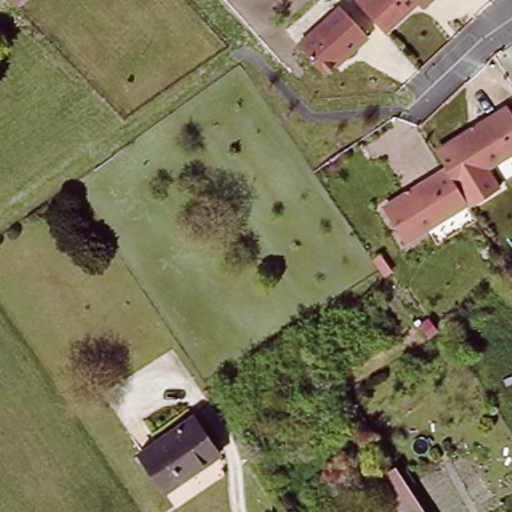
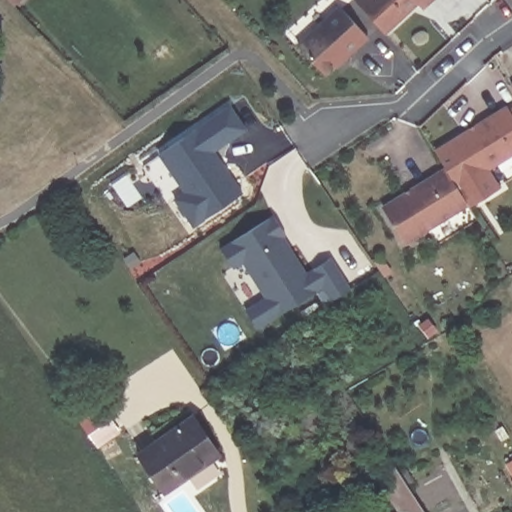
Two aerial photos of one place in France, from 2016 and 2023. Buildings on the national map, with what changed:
unchanged [(18,5),(14,0),(23,0),(18,5)]
unchanged [(415,5),(382,35),(352,3),(356,0),(431,0),(425,5),(420,11),(415,5)]
unchanged [(332,62),(322,72),(295,43),(312,27),(313,29),(338,6),(365,35),(342,57),(334,64),(332,62)]
unchanged [(512,86),(512,92),(510,88),(512,86)]
new [(227,105),(245,130),(213,151),(242,194),(192,227),(173,197),(184,192),(159,154),(227,105)]
unchanged [(475,130),(474,127),(505,108),(512,119),(512,155),(470,182),(447,147),(475,130)]
new [(470,182),(488,170),(498,187),(467,206),(444,170),(435,154),(447,147),(470,182)]
unchanged [(467,206),(403,246),(382,212),(411,194),(410,192),(444,170),(467,206)]
new [(273,216),(285,236),(282,237),(307,274),(330,257),(350,289),(330,302),(322,287),(258,328),(247,310),(265,298),(243,262),(235,268),(222,247),(273,216)]
unchanged [(137,458),(191,418),(217,458),(162,497),(137,458)]
unchanged [(393,472),(420,512),(392,512),(375,484),(393,472)]

